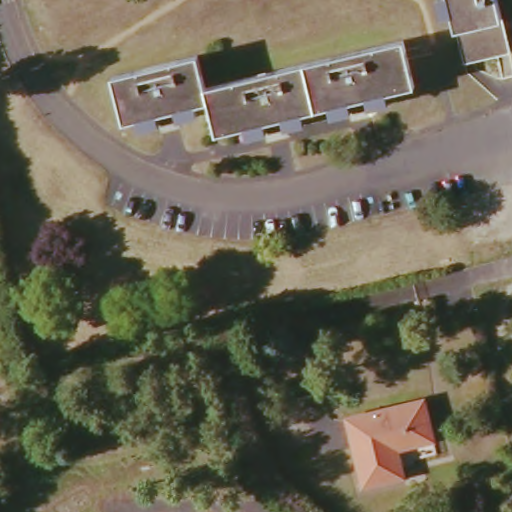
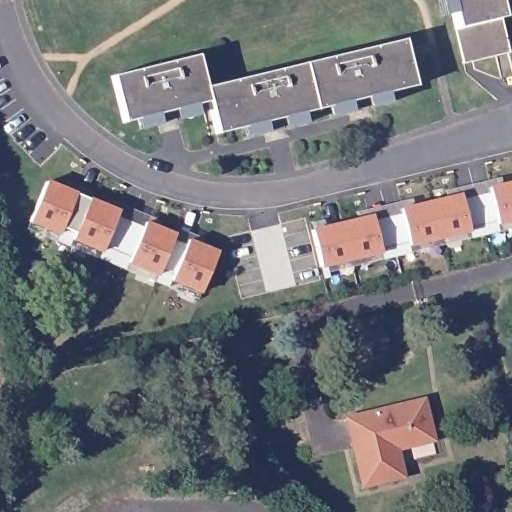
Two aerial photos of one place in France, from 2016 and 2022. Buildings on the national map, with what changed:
unchanged [(468,61),(453,0),(501,0),(504,13),(512,46),(512,50),(497,54),(468,61)]
unchanged [(410,39),(422,84),(225,131),(217,100),(132,120),(121,74),(206,54),(215,85),(410,39)]
new [(47,178),(118,208),(102,248),(30,218),(47,178)]
new [(512,217),(494,222),(485,185),(512,179),(512,217)]
new [(458,192),(466,228),(407,242),(398,206),(458,192)]
new [(370,213),(378,249),(318,263),(310,227),(370,213)]
new [(145,219),(174,231),(157,270),(128,259),(145,219)]
new [(187,237),(216,249),(200,288),(170,276),(187,237)]
unchanged [(225,327),(240,322),(247,351),(232,354),(225,327)]
unchanged [(427,401),(437,441),(401,449),(407,477),(369,486),(353,419),(427,401)]

